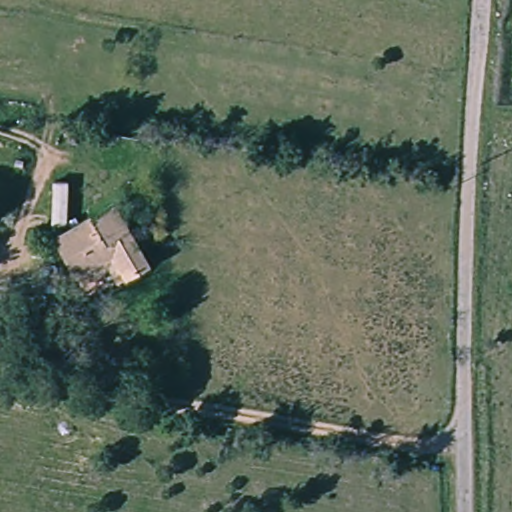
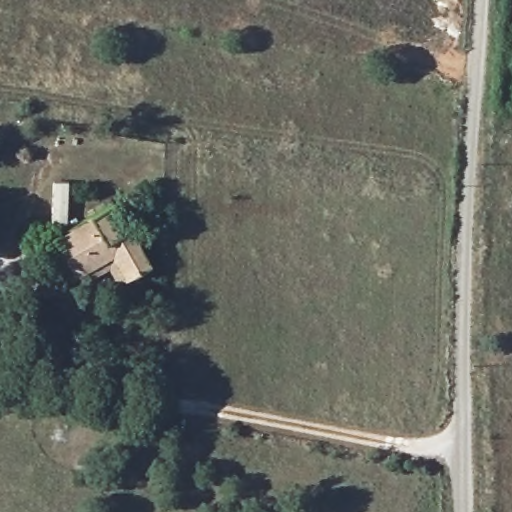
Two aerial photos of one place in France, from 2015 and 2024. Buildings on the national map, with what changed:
unchanged [(60,224),(51,224),(52,180),(69,180),(69,219),(60,224)]
unchanged [(149,272),(125,280),(117,257),(75,272),(59,227),(122,203),(149,272)]

